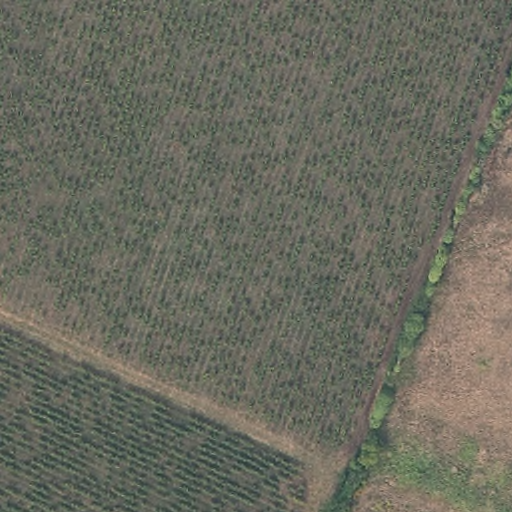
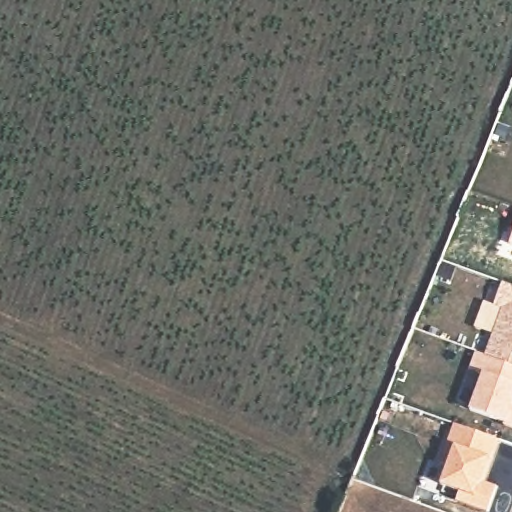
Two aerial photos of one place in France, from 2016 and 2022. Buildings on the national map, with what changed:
new [(508,244),(512,234),(512,246),(508,244)]
new [(512,285),(512,428),(505,425),(469,411),(481,375),(468,370),(475,350),(485,353),(501,308),(494,305),(502,281),(512,285)]
new [(461,492),(440,484),(445,467),(438,465),(454,423),(499,438),(485,481),(497,485),(488,512),(487,512),(456,501),(461,492)]

